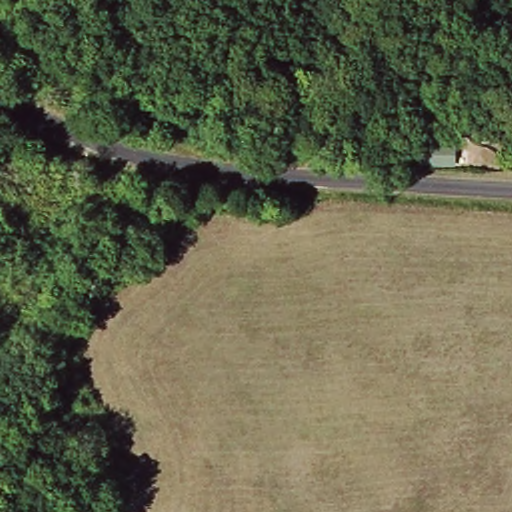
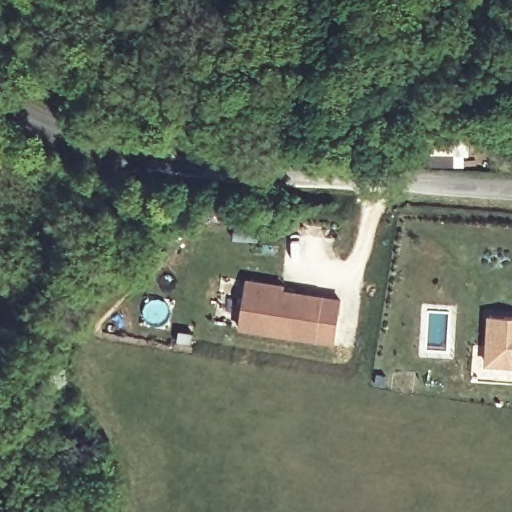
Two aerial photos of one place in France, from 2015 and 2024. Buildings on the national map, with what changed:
new [(285,285),(285,290),(343,298),(335,345),(237,330),(245,278),(285,285)]
new [(512,317),(512,368),(485,366),(487,315),(512,317)]

